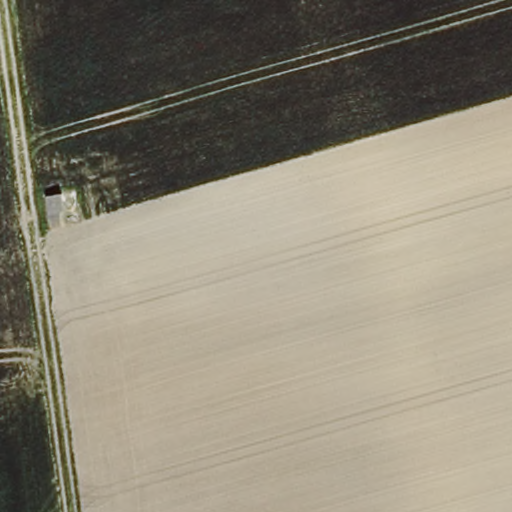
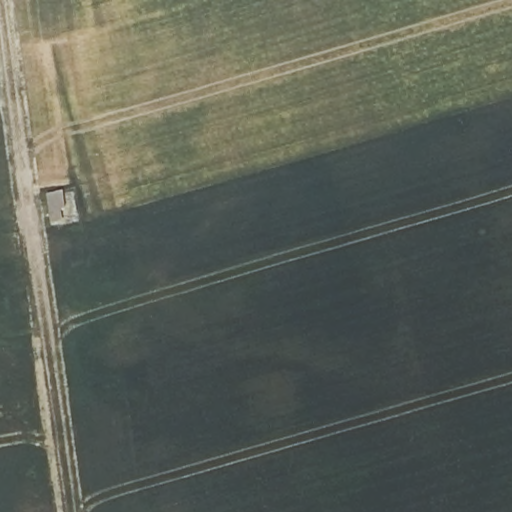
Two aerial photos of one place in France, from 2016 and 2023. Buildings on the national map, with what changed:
unchanged [(65,193),(65,223),(50,225),(47,194),(65,193)]

